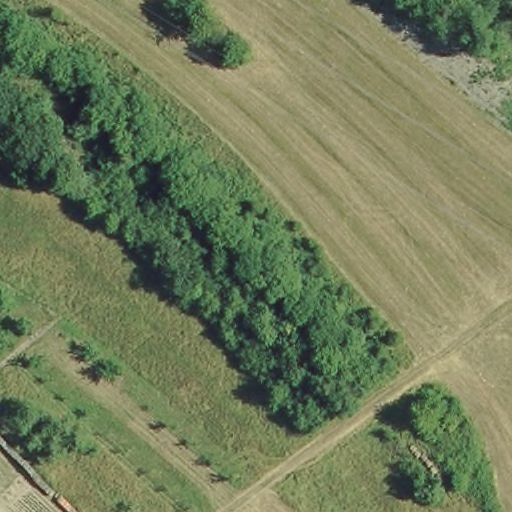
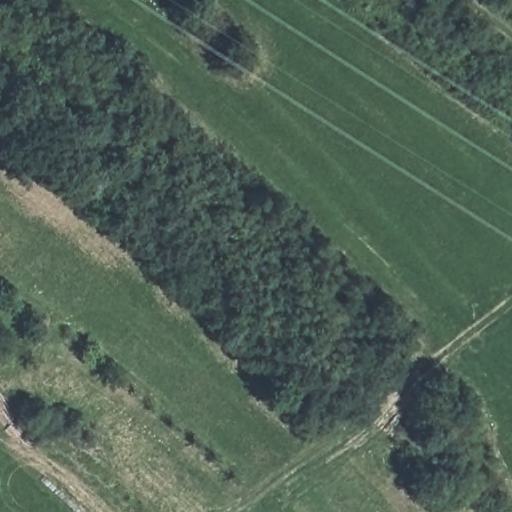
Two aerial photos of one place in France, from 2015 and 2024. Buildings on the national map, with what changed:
unchanged [(442,444),(420,421),(468,388),(485,412),(442,444)]

